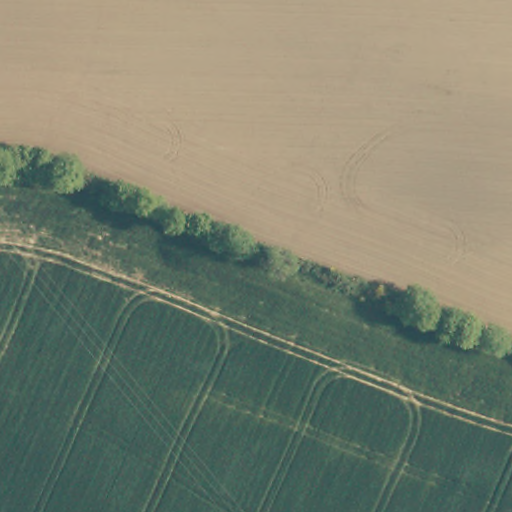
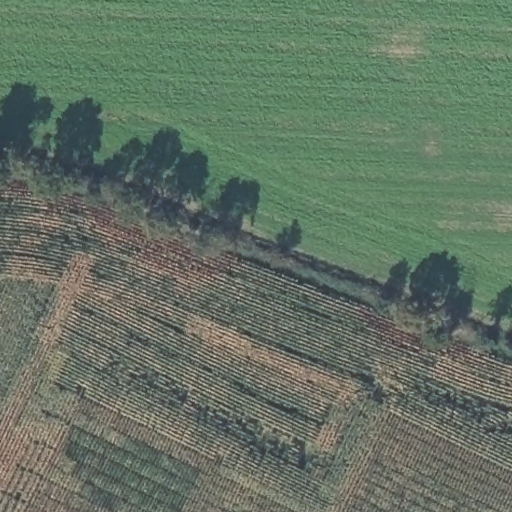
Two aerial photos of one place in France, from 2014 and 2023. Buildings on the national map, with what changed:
[]

